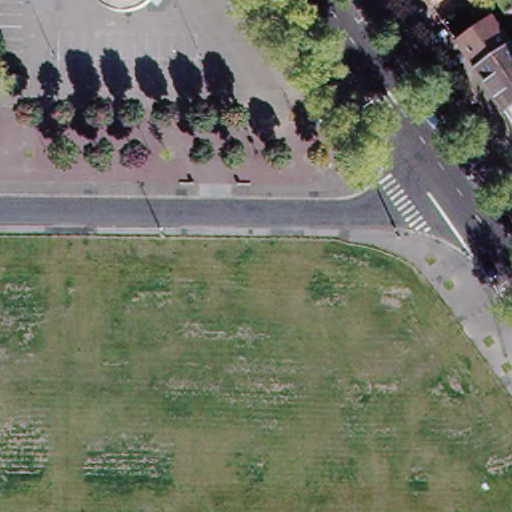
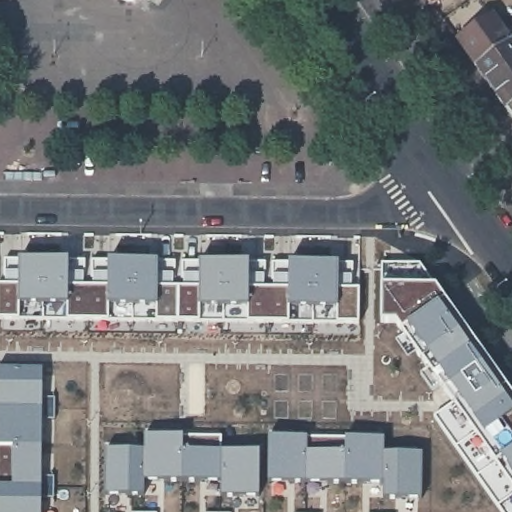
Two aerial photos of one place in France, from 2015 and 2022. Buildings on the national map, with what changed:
unchanged [(423,0),(435,0),(427,6),(423,0)]
unchanged [(458,37),(493,13),(511,39),(476,63),(458,37)]
unchanged [(512,40),(511,39),(512,38),(512,40)]
unchanged [(512,114),(476,63),(511,39),(512,40),(512,114)]
unchanged [(23,77),(23,90),(0,90),(0,76),(23,77)]
demolished [(344,301),(344,262),(343,262),(344,247),(368,247),(389,258),(362,311),(344,301)]
demolished [(91,301),(92,254),(134,255),(133,301),(91,301)]
demolished [(134,255),(175,255),(175,302),(133,301),(134,255)]
demolished [(265,296),(223,295),(224,256),(266,256),(265,296)]
new [(357,264),(358,318),(0,317),(0,258),(357,264)]
demolished [(389,258),(410,269),(424,289),(411,298),(410,297),(379,320),(362,311),(389,258)]
demolished [(344,262),(344,301),(311,300),(311,261),(343,262),(344,262)]
new [(512,387),(512,512),(509,512),(432,417),(451,398),(402,325),(379,318),(380,263),(422,265),(512,387)]
demolished [(180,335),(180,318),(181,266),(199,266),(216,266),(216,319),(198,318),(198,335),(180,335)]
demolished [(66,268),(68,268),(81,269),(81,295),(79,295),(78,312),(67,312),(67,295),(65,295),(65,312),(50,312),(50,268),(66,268)]
demolished [(0,312),(0,270),(43,270),(42,312),(0,312)]
demolished [(430,325),(398,347),(386,330),(379,320),(410,297),(411,298),(430,325)]
demolished [(320,413),(323,392),(320,392),(362,311),(379,320),(386,330),(366,371),(371,373),(395,356),(405,370),(416,385),(401,397),(387,407),(376,391),(375,390),(373,391),(343,392),(341,415),(320,413)]
demolished [(42,354),(0,354),(0,312),(42,312),(42,354)]
demolished [(65,354),(51,354),(51,331),(54,331),(54,315),(66,315),(65,354)]
demolished [(290,315),(307,316),(307,349),(290,348),(290,315)]
demolished [(479,393),(448,415),(426,382),(456,361),(479,393)]
new [(44,366),(43,512),(0,512),(0,366),(44,366)]
demolished [(212,394),(211,405),(202,405),(202,393),(212,394)]
demolished [(128,410),(105,410),(105,396),(129,396),(128,410)]
demolished [(461,463),(462,440),(496,417),(506,432),(461,463)]
demolished [(377,423),(392,423),(391,445),(376,444),(377,423)]
demolished [(157,430),(156,445),(133,444),(133,429),(157,430)]
new [(305,430),(390,429),(390,439),(425,441),(422,499),(379,498),(379,485),(304,485),(305,430)]
demolished [(41,465),(0,465),(0,432),(41,433),(41,459),(41,465)]
new [(105,449),(145,447),(144,435),(233,435),(234,448),(257,448),(259,495),(221,495),(221,480),(144,480),(145,494),(104,493),(105,449)]
demolished [(66,460),(51,459),(51,445),(66,445),(66,460)]
demolished [(455,459),(441,458),(442,445),(455,445),(455,459)]
demolished [(485,470),(512,450),(512,501),(508,503),(485,470)]
demolished [(394,502),(395,465),(405,465),(405,455),(421,454),(421,459),(432,459),(432,465),(434,465),(434,503),(394,502)]
demolished [(130,500),(89,500),(89,458),(131,458),(130,500)]
demolished [(172,458),(172,500),(130,500),(131,458),(172,458)]
demolished [(263,501),(221,500),(221,461),(264,461),(263,501)]
demolished [(53,463),(63,463),(63,476),(53,476),(53,463)]
demolished [(40,499),(0,499),(0,465),(41,465),(40,499)]
demolished [(348,502),(308,501),(309,465),(348,465),(348,502)]

